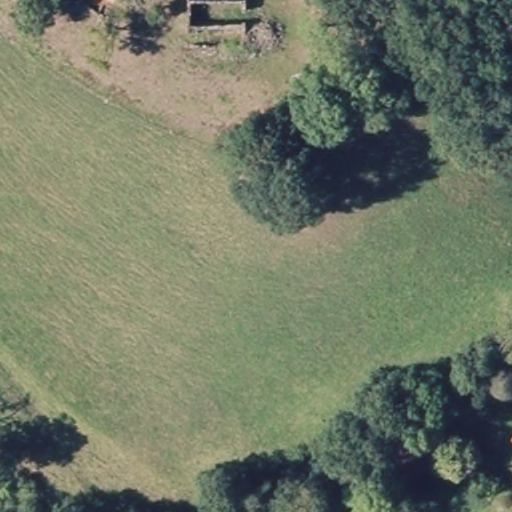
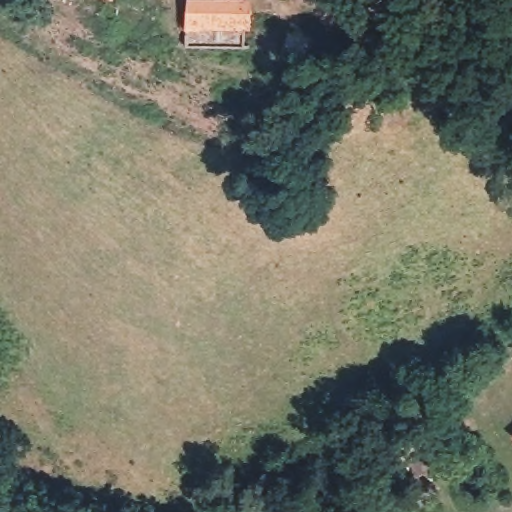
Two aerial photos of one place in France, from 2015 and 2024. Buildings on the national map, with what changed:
unchanged [(115,2),(109,0),(116,0),(115,2)]
new [(251,31),(185,31),(186,0),(252,0),(251,31)]
unchanged [(444,446),(431,454),(425,444),(392,464),(380,445),(426,419),(444,446)]
unchanged [(508,436),(512,432),(512,438),(508,436)]

